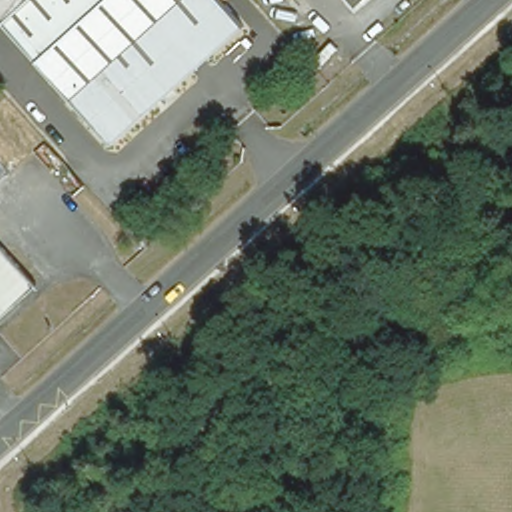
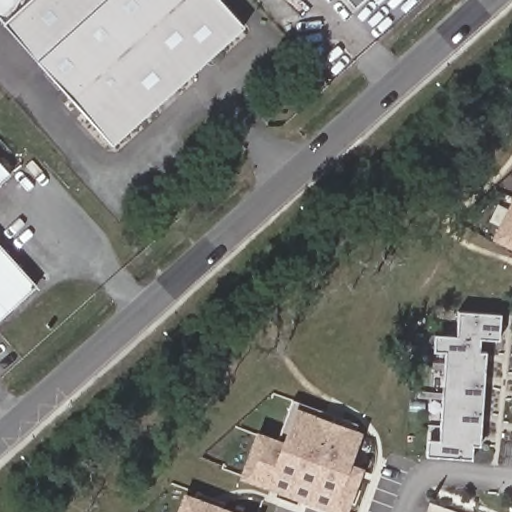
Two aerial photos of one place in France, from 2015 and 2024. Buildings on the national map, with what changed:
new [(0,0),(25,0),(3,21),(0,18),(0,0)]
unchanged [(36,59),(3,21),(25,0),(221,0),(243,25),(111,143),(36,59)]
unchanged [(347,0),(361,0),(354,7),(347,0)]
new [(0,183),(0,161),(11,173),(0,183)]
new [(512,204),(512,247),(494,238),(512,204)]
unchanged [(0,314),(0,249),(32,286),(0,314)]
new [(459,308),(503,311),(501,337),(482,336),(481,349),(488,349),(481,444),(474,443),(474,456),(428,453),(429,436),(441,437),(447,349),(434,349),(436,332),(458,333),(459,308)]
new [(260,428),(287,435),(298,402),(367,428),(371,463),(352,512),(340,512),(245,473),(260,428)]
new [(250,512),(181,512),(190,490),(250,512)]

